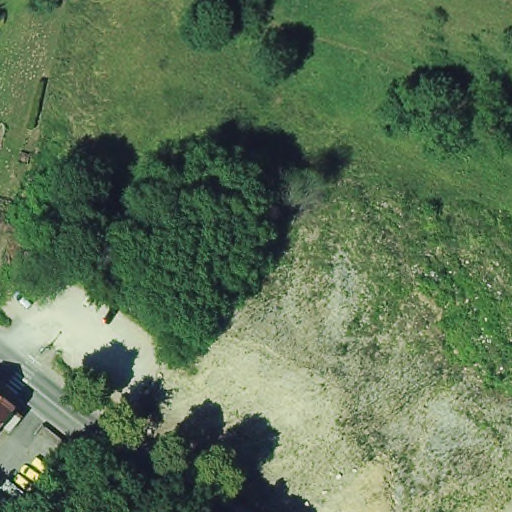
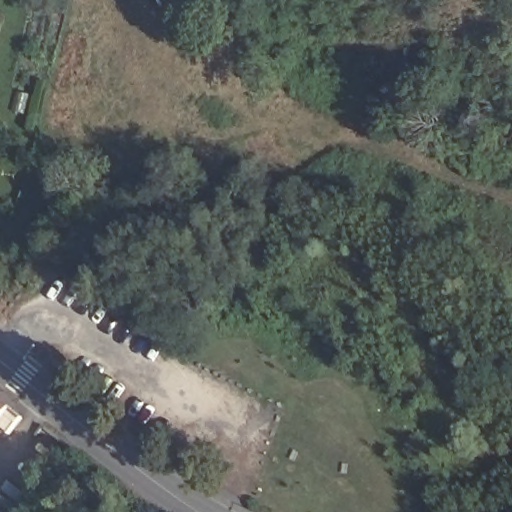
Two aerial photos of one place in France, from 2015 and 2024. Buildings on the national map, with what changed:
unchanged [(4,427),(0,432),(0,395),(18,410),(14,415),(24,423),(14,435),(4,427)]

